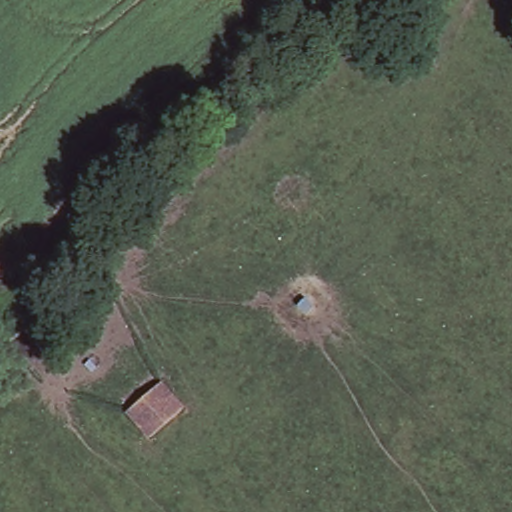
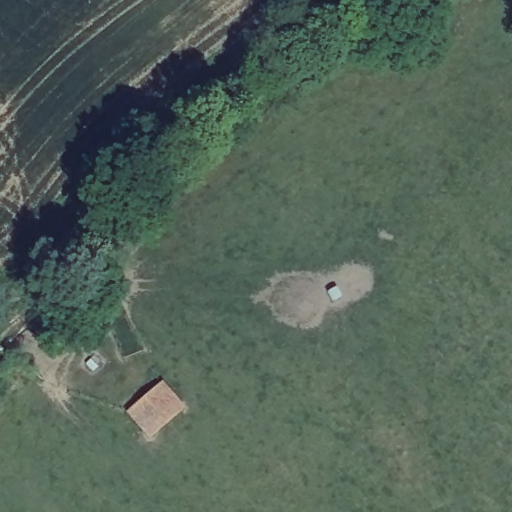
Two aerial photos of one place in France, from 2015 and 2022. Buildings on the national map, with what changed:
unchanged [(124,414),(161,383),(182,409),(148,442),(124,414)]

